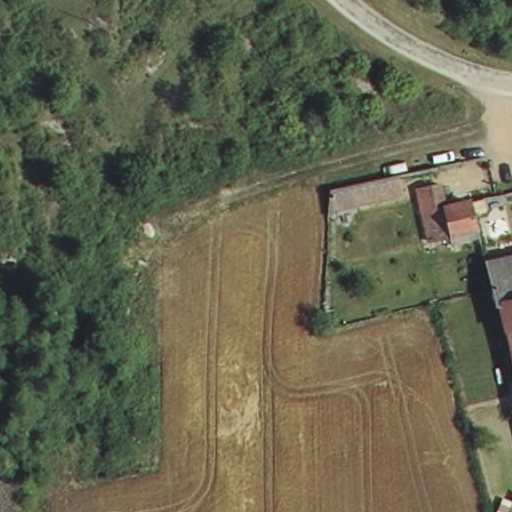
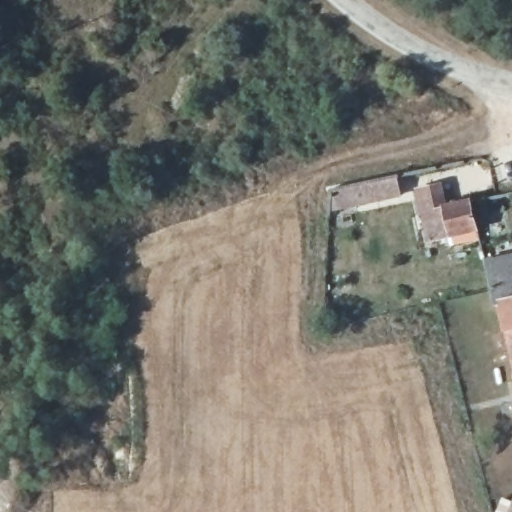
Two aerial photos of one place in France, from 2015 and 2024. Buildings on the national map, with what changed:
unchanged [(405,193),(328,210),(329,187),(379,177),(400,173),(405,193)]
unchanged [(474,218),(476,227),(449,232),(450,239),(431,243),(419,191),(440,186),(445,208),(470,203),(474,218)]
unchanged [(503,308),(495,311),(490,290),(484,265),(512,257),(512,306),(503,308)]
unchanged [(512,306),(512,348),(511,348),(503,308),(512,306)]
unchanged [(511,348),(512,348),(512,352),(511,348)]
unchanged [(512,510),(512,512),(511,512),(512,510)]

